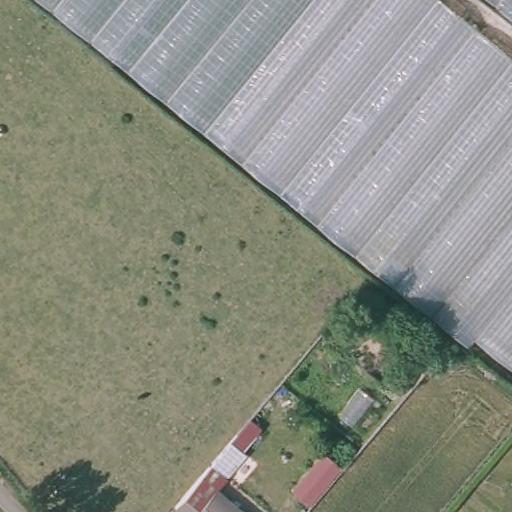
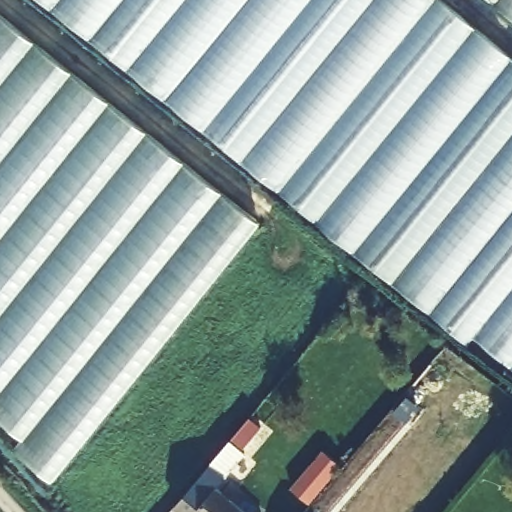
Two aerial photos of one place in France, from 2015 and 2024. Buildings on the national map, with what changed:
unchanged [(279,192),(203,131),(127,70),(38,0),(440,0),(511,58),(355,254),(279,192)]
unchanged [(512,0),(512,18),(490,0),(512,0)]
new [(54,482),(13,450),(22,439),(0,420),(0,14),(261,224),(54,482)]
unchanged [(467,345),(355,254),(511,58),(512,58),(512,367),(474,337),(467,345)]
unchanged [(269,413),(240,448),(231,440),(261,405),(269,413)]
unchanged [(321,450),(341,466),(310,506),(290,490),(321,450)]
unchanged [(173,511),(207,472),(211,467),(224,479),(216,489),(242,512),(174,512),(173,511)]

